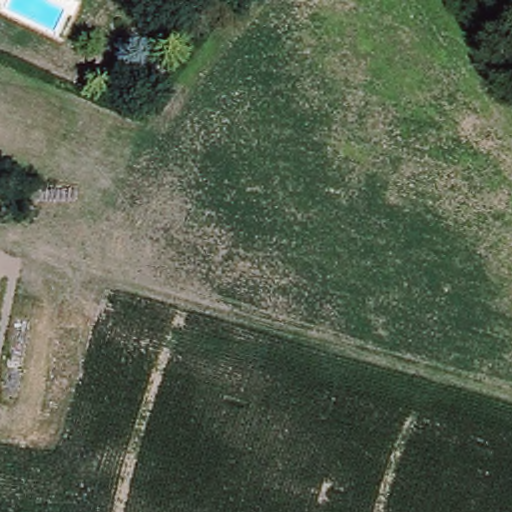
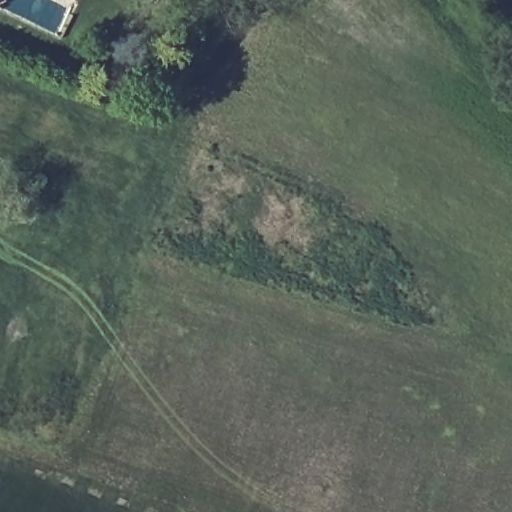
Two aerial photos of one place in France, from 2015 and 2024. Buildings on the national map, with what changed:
[]

